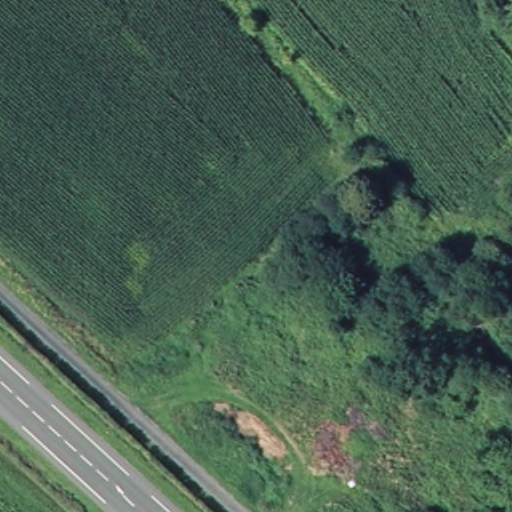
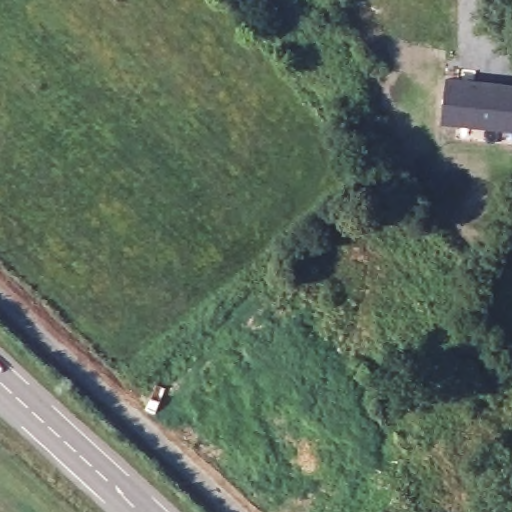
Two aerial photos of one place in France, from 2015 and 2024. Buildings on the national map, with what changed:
new [(447,77),(512,84),(512,126),(442,118),(447,77)]

